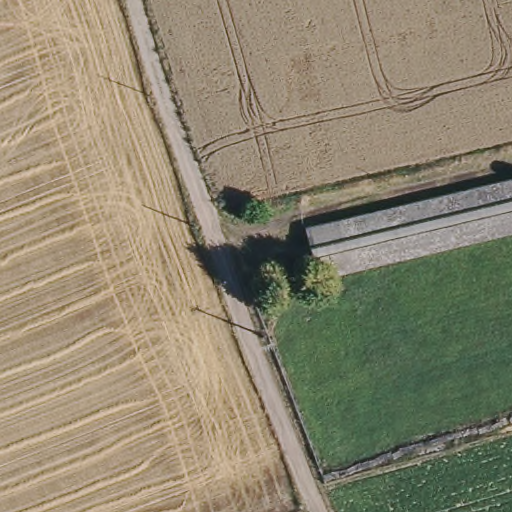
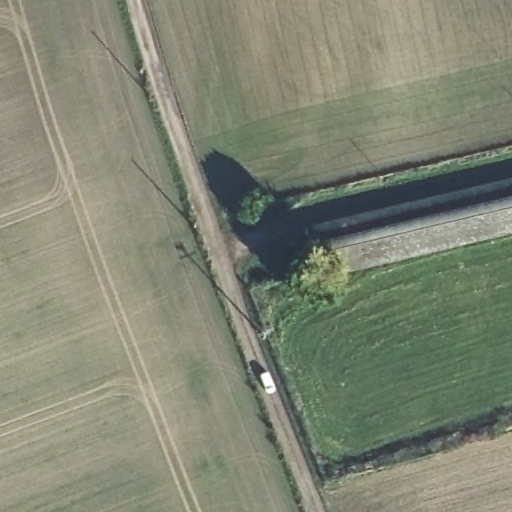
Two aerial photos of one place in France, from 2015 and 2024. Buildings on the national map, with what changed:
unchanged [(512,183),(512,232),(317,280),(307,235),(512,183)]

